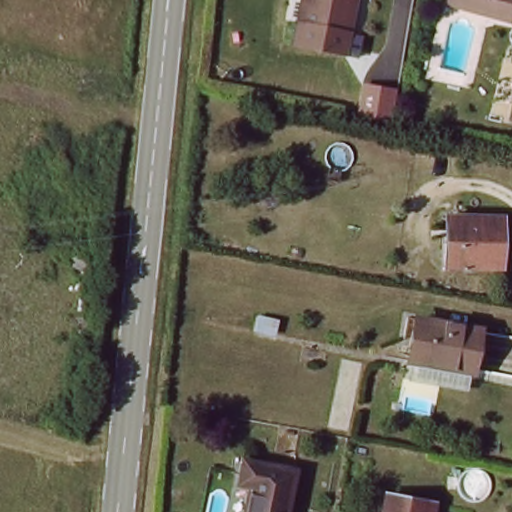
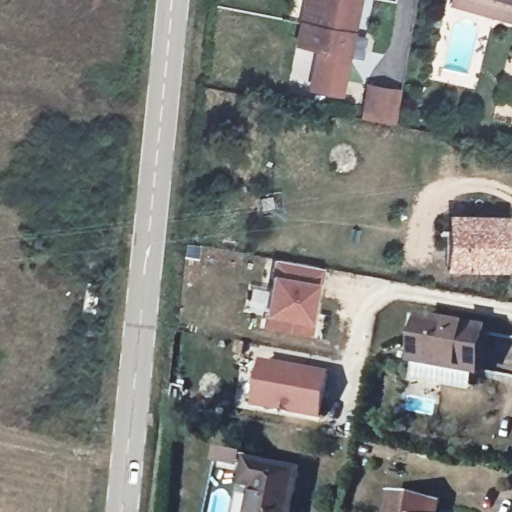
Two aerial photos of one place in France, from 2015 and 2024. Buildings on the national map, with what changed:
unchanged [(354,34),(350,33),(346,57),(293,47),(297,26),(302,28),(308,0),(361,0),(354,34)]
unchanged [(449,0),(512,0),(512,20),(448,2),(449,0)]
new [(365,83),(402,89),(395,127),(359,120),(365,83)]
unchanged [(507,223),(505,268),(448,268),(450,221),(507,223)]
new [(322,264),(315,329),(271,323),(280,259),(322,264)]
unchanged [(425,317),(483,329),(476,370),(417,360),(425,317)]
new [(333,370),(326,416),(259,404),(266,358),(333,370)]
unchanged [(474,388),(415,377),(417,360),(476,370),(474,388)]
unchanged [(243,488),(247,461),(295,468),(289,512),(254,512),(257,490),(243,488)]
unchanged [(437,500),(436,512),(393,512),(396,495),(437,500)]

